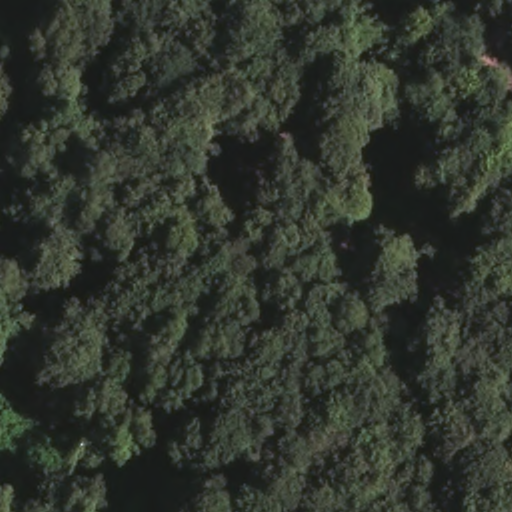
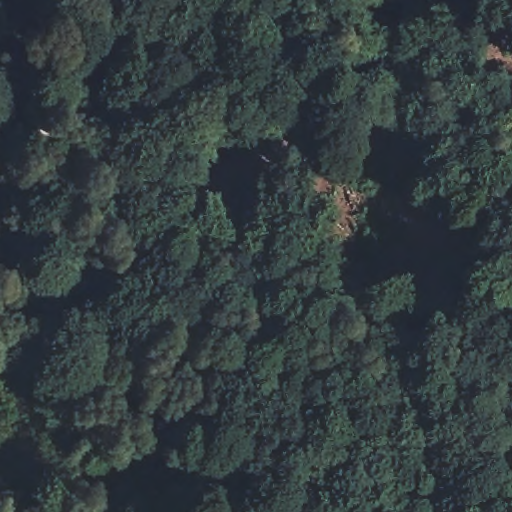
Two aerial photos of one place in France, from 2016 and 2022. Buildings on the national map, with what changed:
[]

